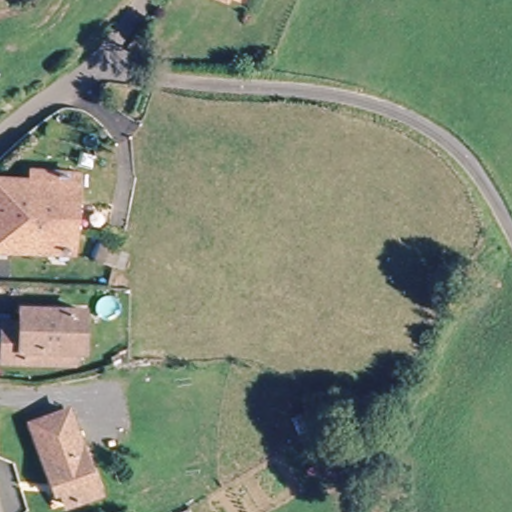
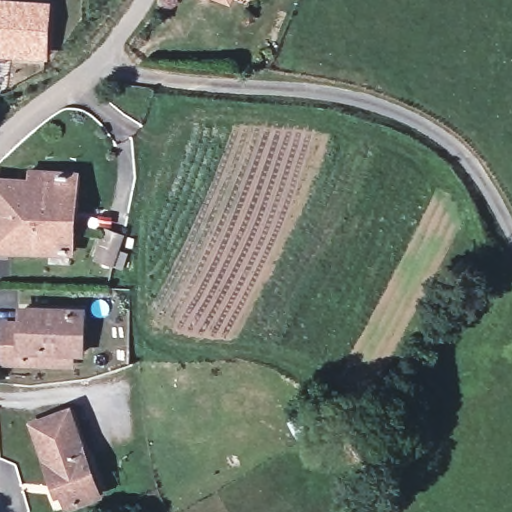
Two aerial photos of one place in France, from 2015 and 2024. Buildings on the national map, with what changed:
new [(53,0),(50,57),(0,55),(0,0),(53,0)]
unchanged [(31,181),(31,173),(77,172),(73,253),(0,254),(0,182),(31,181)]
unchanged [(111,229),(124,235),(112,266),(99,261),(111,229)]
unchanged [(3,354),(3,317),(22,317),(22,303),(88,304),(86,344),(86,353),(73,353),(26,353),(3,354)]
unchanged [(36,447),(71,431),(87,465),(90,464),(111,507),(98,512),(76,512),(70,499),(61,502),(52,481),(36,447)]

